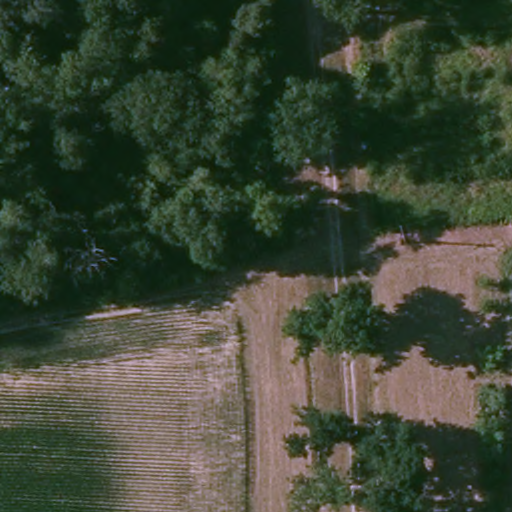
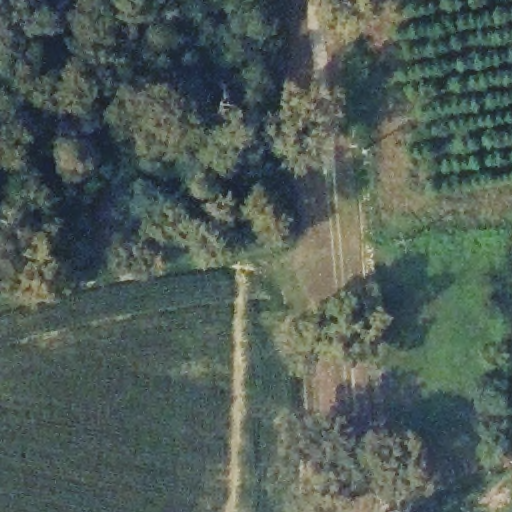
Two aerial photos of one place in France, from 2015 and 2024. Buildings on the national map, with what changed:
unchanged [(352,210),(342,211),(341,199),(351,198),(352,210)]

